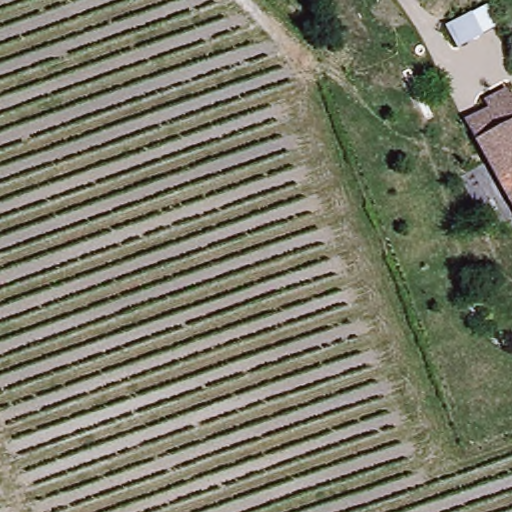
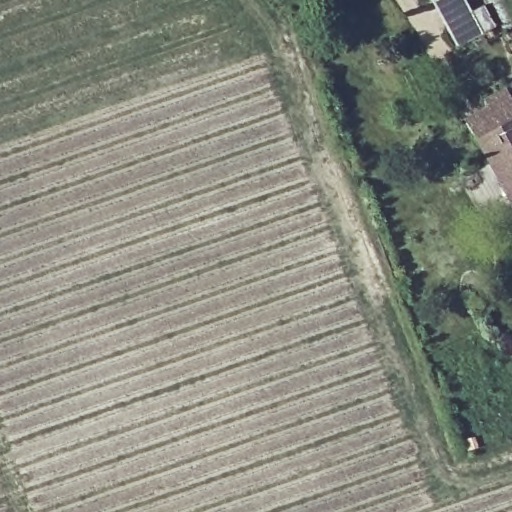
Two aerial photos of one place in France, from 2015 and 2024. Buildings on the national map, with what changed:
new [(495,28),(459,49),(431,0),(465,0),(467,3),(464,5),(469,14),(483,6),(495,28)]
unchanged [(471,140),(496,125),(491,119),(484,110),(508,97),(512,106),(512,207),(471,140)]

